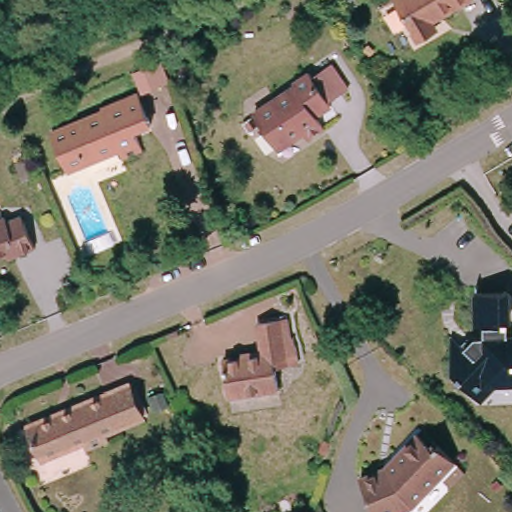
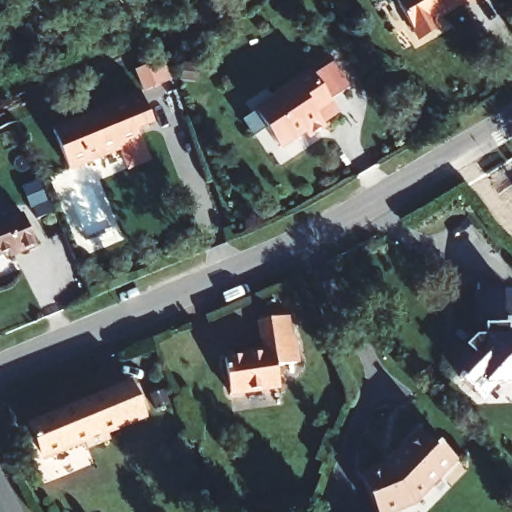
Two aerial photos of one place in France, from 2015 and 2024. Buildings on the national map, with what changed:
unchanged [(448,8),(422,22),(425,28),(404,39),(388,10),(382,0),(461,0),(462,0),(448,8)]
unchanged [(314,108),(322,122),(306,132),(300,123),(291,128),(294,133),(278,144),(254,105),(298,80),(295,76),(309,66),(312,72),(328,63),(342,85),(326,95),(330,100),(314,108)]
unchanged [(134,90),(146,118),(132,124),(139,141),(118,150),(116,145),(64,166),(50,132),(101,111),(99,104),(134,90)]
unchanged [(3,220),(22,212),(33,242),(14,249),(12,245),(0,250),(0,214),(3,220)]
unchanged [(450,346),(460,338),(464,343),(473,333),(481,333),(481,327),(474,327),(473,288),(505,287),(508,334),(512,334),(512,379),(496,380),(481,396),(458,375),(460,373),(450,346)]
unchanged [(219,361),(258,355),(254,322),(283,317),(289,364),(272,367),(276,389),(224,398),(219,361)]
unchanged [(125,383),(138,413),(101,429),(105,437),(83,448),(79,440),(41,455),(29,424),(125,383)]
unchanged [(380,463),(413,431),(429,445),(433,441),(450,458),(411,496),(379,512),(370,512),(353,474),(380,463)]

